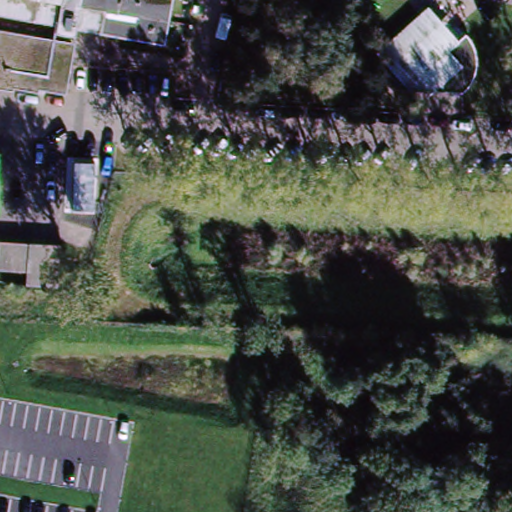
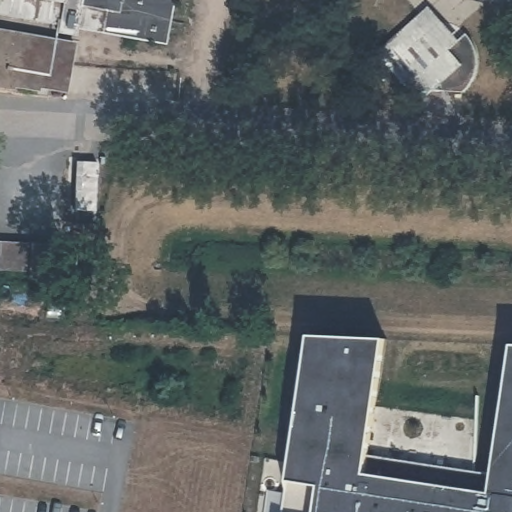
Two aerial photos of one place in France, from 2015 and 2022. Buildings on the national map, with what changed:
unchanged [(177,0),(169,46),(82,29),(79,39),(64,36),(66,26),(19,16),(0,12),(0,0),(177,0)]
unchanged [(466,34),(473,45),(477,56),(477,66),(475,76),(471,85),(463,93),(393,89),(402,81),(383,61),(426,24),(449,50),(466,34)]
unchanged [(75,46),(64,94),(40,89),(39,91),(14,86),(14,89),(0,87),(0,32),(75,46)]
unchanged [(1,243),(32,245),(30,286),(0,284),(0,256),(1,243)]
new [(308,337),(384,340),(365,456),(492,476),(512,346),(512,512),(282,512),(308,337)]

